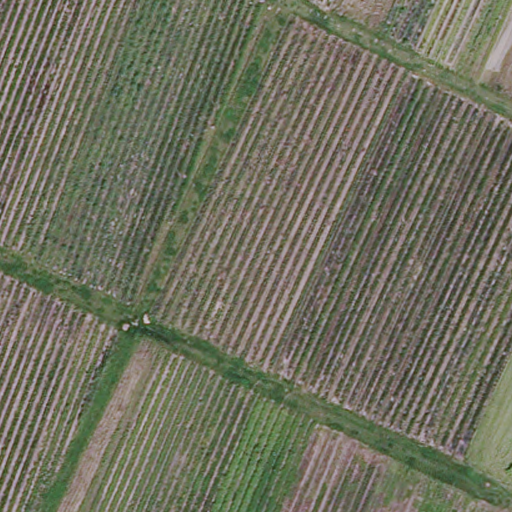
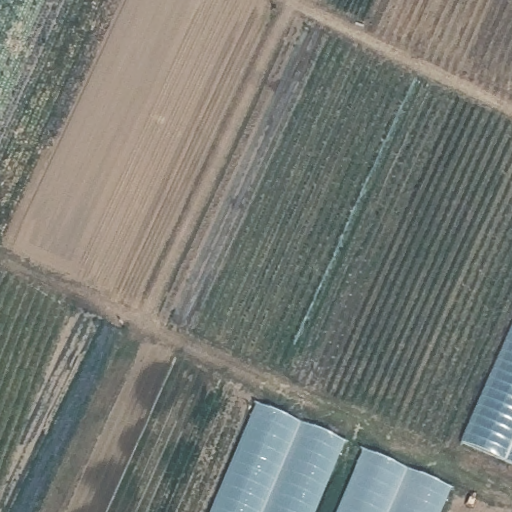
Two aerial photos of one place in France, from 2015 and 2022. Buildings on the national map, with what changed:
unchanged [(512,319),(512,456),(461,432),(512,319)]
new [(341,440),(311,512),(211,512),(257,406),(341,440)]
new [(440,512),(337,512),(362,451),(450,490),(440,512)]

